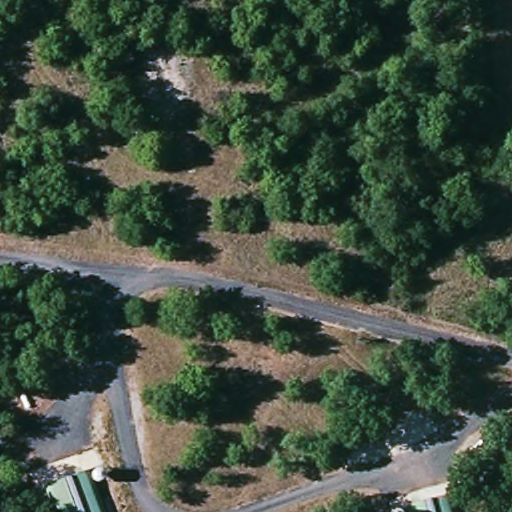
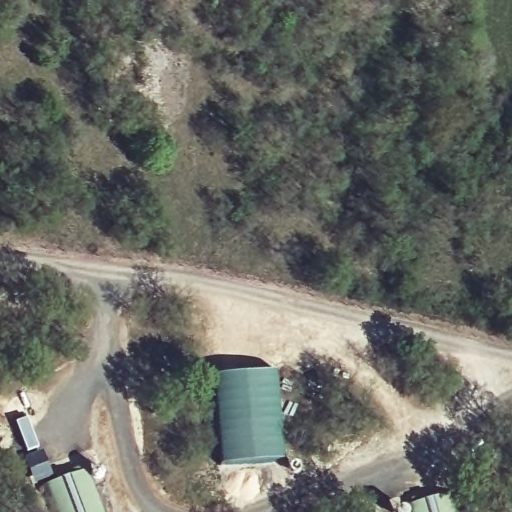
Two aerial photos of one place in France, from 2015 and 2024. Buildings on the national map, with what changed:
new [(276,370),(285,459),(221,465),(214,375),(276,370)]
unchanged [(80,474),(95,512),(48,512),(40,491),(80,474)]
unchanged [(442,497),(447,512),(401,512),(401,510),(442,497)]

